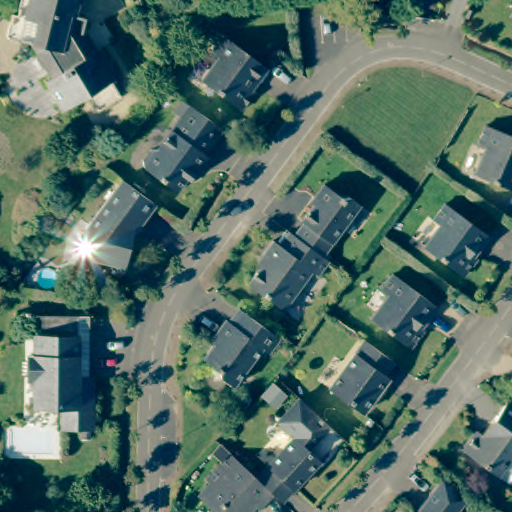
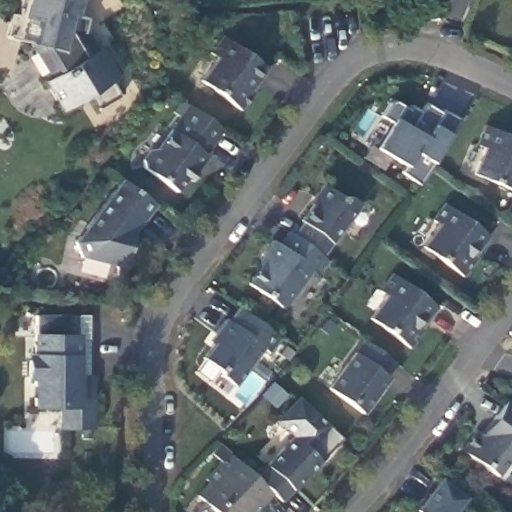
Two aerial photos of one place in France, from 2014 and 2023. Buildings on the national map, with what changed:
unchanged [(78,10),(87,12),(83,36),(92,51),(102,43),(121,75),(113,81),(121,94),(99,109),(88,95),(66,107),(49,81),(55,76),(30,38),(10,35),(14,12),(21,12),(23,0),(80,0),(78,10)]
unchanged [(266,72),(254,90),(250,87),(246,92),(253,97),(241,115),(201,86),(219,60),(213,56),(224,42),(266,72)]
new [(406,165),(376,148),(391,122),(381,115),(392,99),(409,110),(411,106),(419,113),(425,104),(442,115),(444,110),(459,120),(450,135),(433,162),(419,185),(404,172),(406,165)]
unchanged [(199,153),(202,155),(186,177),(182,177),(174,189),(137,162),(146,150),(155,145),(186,104),(218,126),(199,153)]
unchanged [(512,189),(472,173),(481,149),(473,146),(481,125),(512,137),(512,189)]
unchanged [(132,235),(126,235),(121,242),(128,256),(120,278),(115,275),(109,265),(80,260),(74,245),(122,184),(154,206),(132,235)]
unchanged [(299,222),(296,220),(311,200),(308,198),(319,184),(337,197),(348,199),(356,204),(318,259),(289,237),(299,222)]
unchanged [(483,237),(473,250),(469,247),(465,253),(470,257),(456,276),(420,249),(437,226),(427,220),(439,205),(483,237)]
unchanged [(310,280),(305,276),(283,307),(273,305),(244,285),(263,259),(258,256),(267,244),(276,245),(284,235),(289,237),(318,259),(323,262),(310,280)]
unchanged [(432,306),(420,321),(416,318),(411,325),(417,330),(404,346),(367,317),(383,296),(375,290),(388,273),(432,306)]
unchanged [(264,351),(257,346),(228,385),(212,374),(212,365),(199,355),(212,338),(205,333),(218,316),(222,320),(234,305),(276,336),(264,351)]
unchanged [(55,410),(29,410),(28,385),(24,380),(24,365),(30,360),(29,340),(7,339),(7,318),(29,318),(71,318),(83,318),(83,341),(83,362),(71,362),(71,384),(87,384),(88,428),(63,430),(63,410),(55,410)]
unchanged [(384,381),(389,385),(365,417),(325,387),(361,338),(396,365),(384,381)]
unchanged [(288,433),(267,415),(289,391),(310,410),(332,431),(311,455),(310,455),(273,496),(263,486),(251,475),(288,433)]
unchanged [(490,474),(455,448),(469,429),(478,435),(490,418),(486,415),(498,398),(512,409),(512,455),(504,455),(490,474)]
unchanged [(244,500),(233,512),(209,512),(191,495),(202,483),(199,480),(225,450),(251,475),(263,486),(247,503),(244,500)]
unchanged [(414,512),(438,480),(463,499),(454,512),(414,512)]

